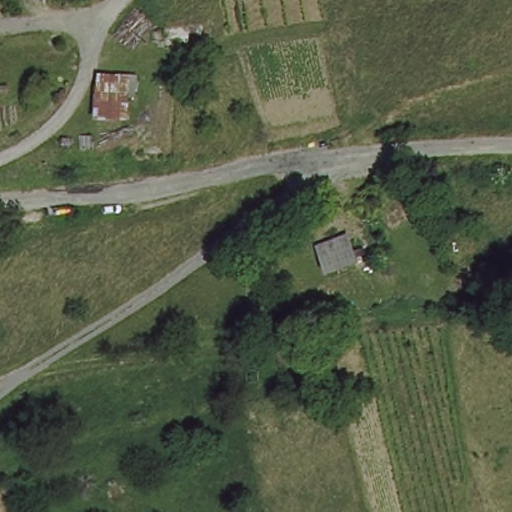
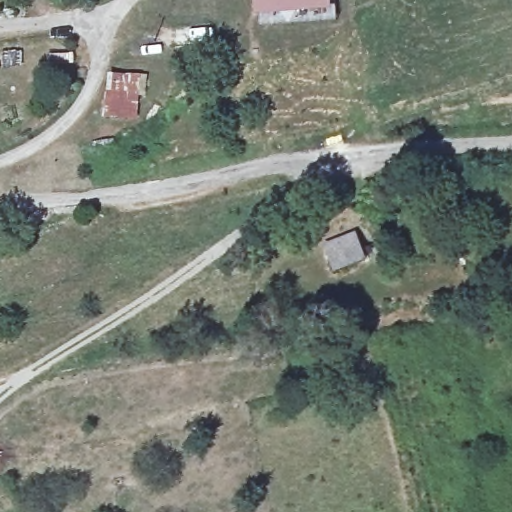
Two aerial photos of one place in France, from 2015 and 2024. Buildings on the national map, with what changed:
new [(255,0),(331,0),(332,11),(255,15),(255,0)]
unchanged [(142,74),(140,119),(104,120),(110,74),(142,74)]
unchanged [(322,245),(352,235),(360,260),(332,270),(322,245)]

